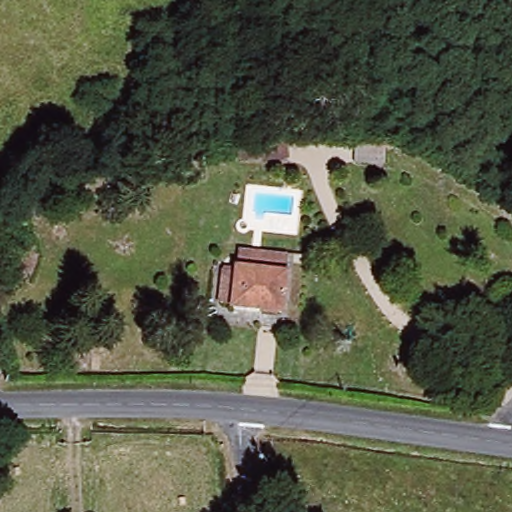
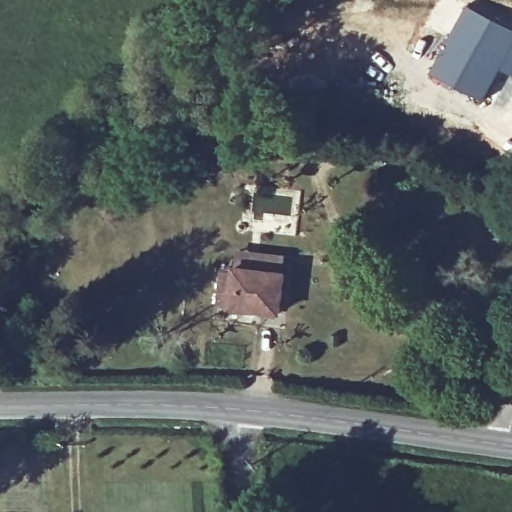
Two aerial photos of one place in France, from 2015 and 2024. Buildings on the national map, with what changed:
new [(512,30),(512,77),(500,70),(483,103),(430,75),(465,6),(512,30)]
unchanged [(278,136),(279,150),(237,151),(236,140),(278,136)]
unchanged [(245,251),(289,256),(287,274),(283,315),(241,310),(241,306),(226,305),(227,295),(229,275),(242,276),(242,270),(245,251)]

